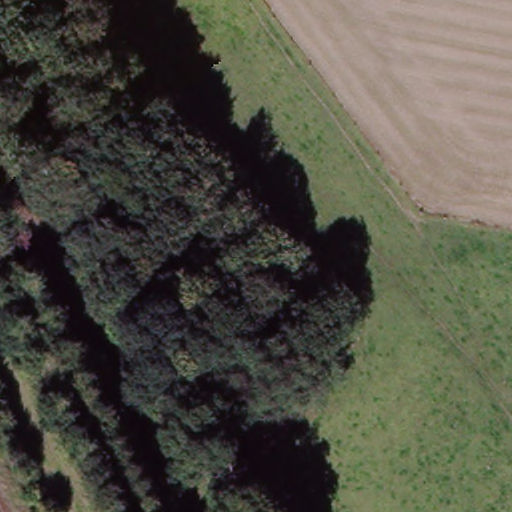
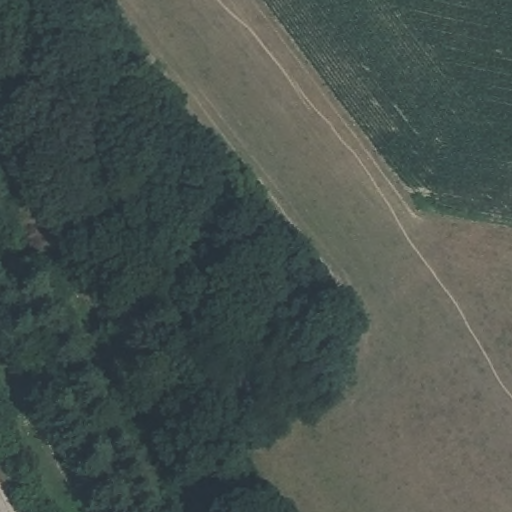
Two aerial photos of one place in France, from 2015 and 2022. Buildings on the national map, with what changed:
[]

